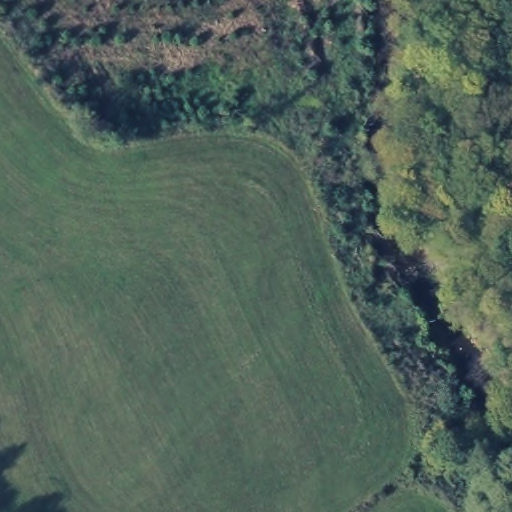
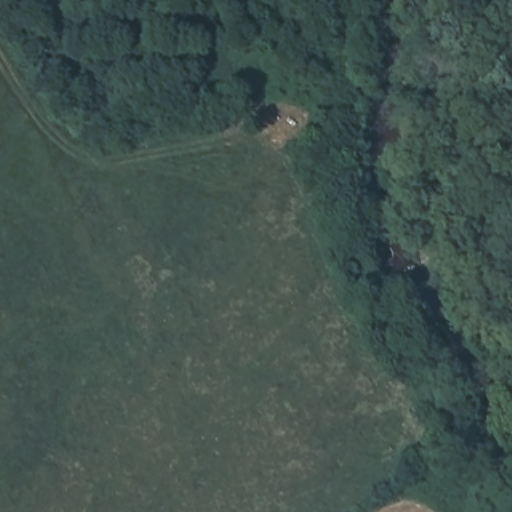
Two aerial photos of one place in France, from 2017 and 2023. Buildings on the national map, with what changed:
[]

